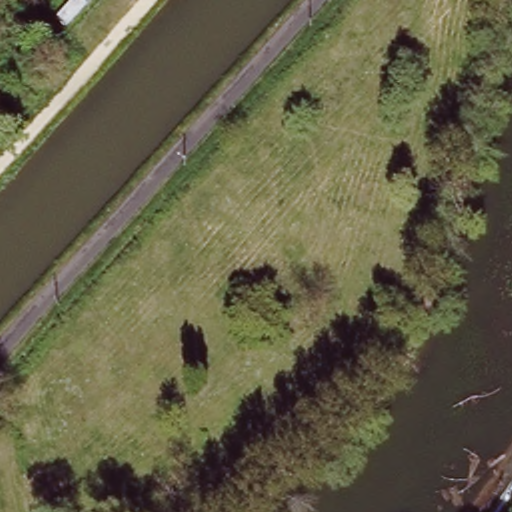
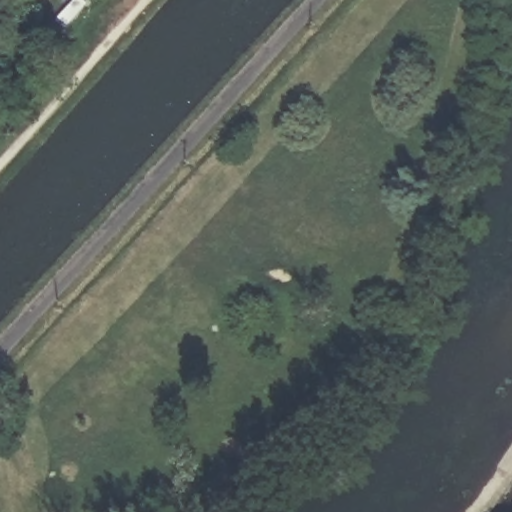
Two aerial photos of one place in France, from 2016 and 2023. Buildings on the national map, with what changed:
unchanged [(90,0),(70,23),(61,15),(74,0),(89,0),(90,0)]

